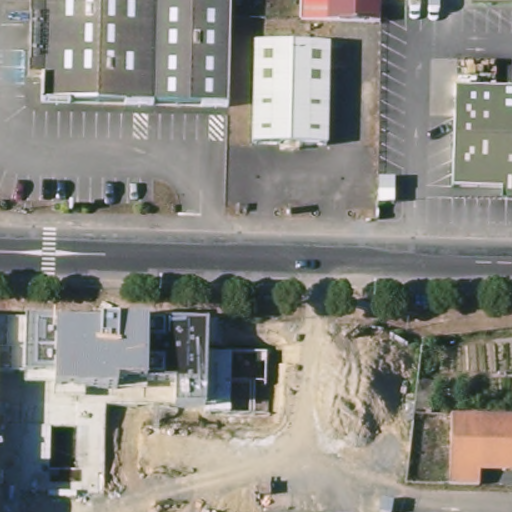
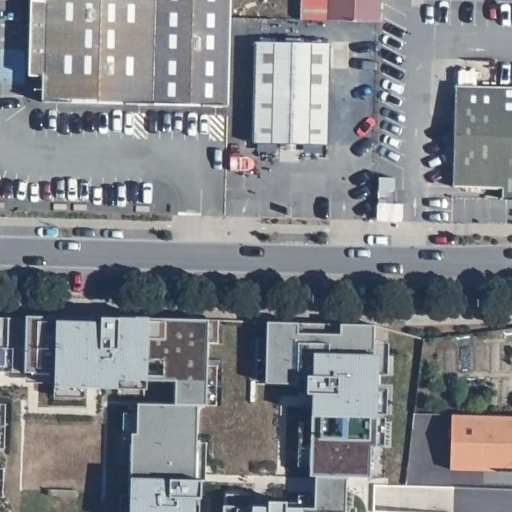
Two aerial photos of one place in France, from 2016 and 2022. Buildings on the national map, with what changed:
unchanged [(34,3),(47,4),(47,0),(233,0),(232,21),(229,106),(229,108),(43,106),(44,77),(31,77),(34,3)]
unchanged [(382,8),(381,24),(331,23),(300,22),(301,0),(382,0),(382,8)]
unchanged [(329,45),(328,148),(256,147),(257,44),(329,45)]
unchanged [(505,191),(456,190),(458,89),(512,90),(512,203),(506,203),(505,191)]
unchanged [(25,316),(58,319),(149,317),(207,319),(219,320),(218,345),(206,344),(207,369),(215,370),(214,408),(204,407),(172,407),(174,381),(146,381),(115,380),(115,391),(54,390),(55,370),(25,372),(0,372),(0,318),(25,316)]
new [(373,325),(372,354),(378,354),(376,417),(375,446),(368,446),(368,476),(346,475),(345,512),(223,512),(223,506),(235,506),(235,508),(251,509),(251,506),(268,507),(268,501),(285,502),(285,507),(302,508),(314,508),(315,474),(311,474),(311,416),(312,394),(306,394),(307,376),(295,375),(295,382),(264,381),(266,322),(373,325)]
new [(130,433),(136,433),(137,404),(172,405),(172,407),(198,407),(198,480),(198,497),(195,497),(195,512),(129,512),(130,478),(130,433)]
unchanged [(469,418),(512,420),(512,475),(480,474),(480,489),(453,488),(451,488),(452,418),(469,418)]

